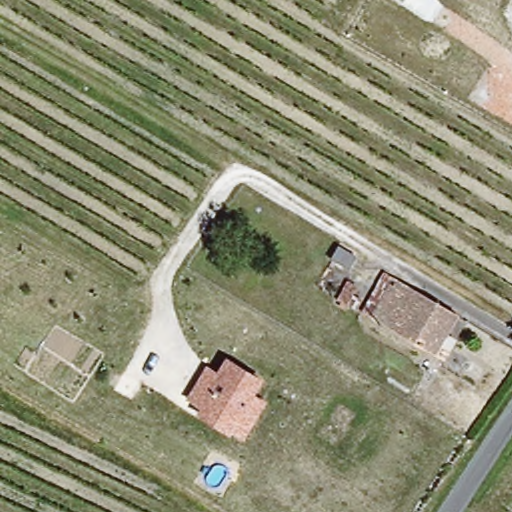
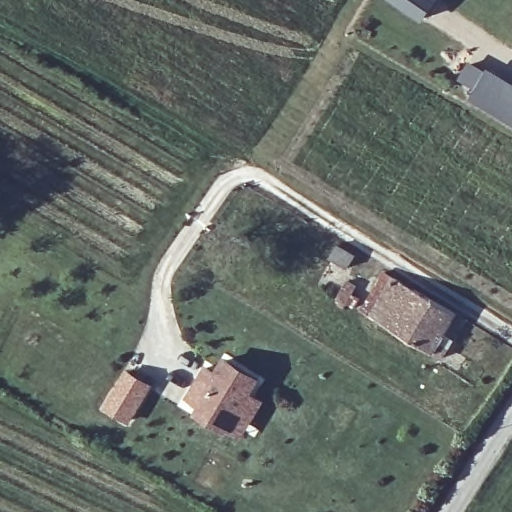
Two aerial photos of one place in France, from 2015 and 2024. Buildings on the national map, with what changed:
new [(393,0),(438,0),(424,20),(393,0)]
new [(478,89),(460,80),(470,62),(487,71),(488,69),(512,83),(512,124),(472,100),(478,89)]
unchanged [(415,343),(375,318),(397,281),(438,304),(415,343)]
unchanged [(438,304),(459,316),(448,334),(457,339),(445,359),(437,354),(415,343),(438,304)]
unchanged [(217,372),(225,358),(265,379),(256,395),(268,402),(244,440),(196,415),(200,406),(186,399),(205,365),(217,372)]
new [(130,423),(104,407),(127,369),(154,384),(130,423)]

